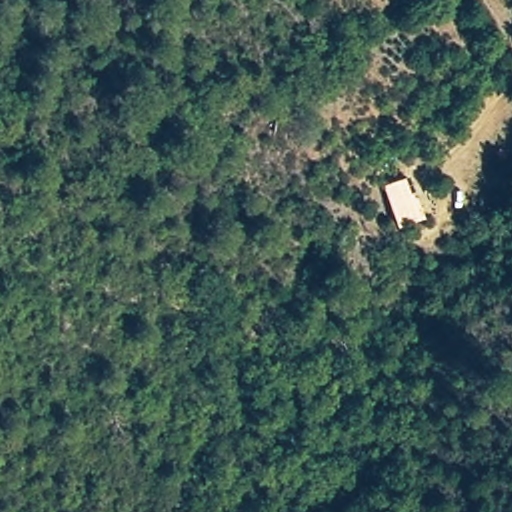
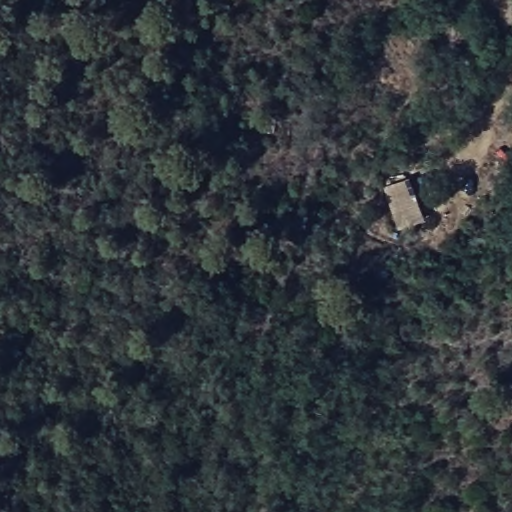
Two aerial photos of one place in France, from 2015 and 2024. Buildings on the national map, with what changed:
unchanged [(422,222),(409,226),(395,183),(409,176),(422,222)]

